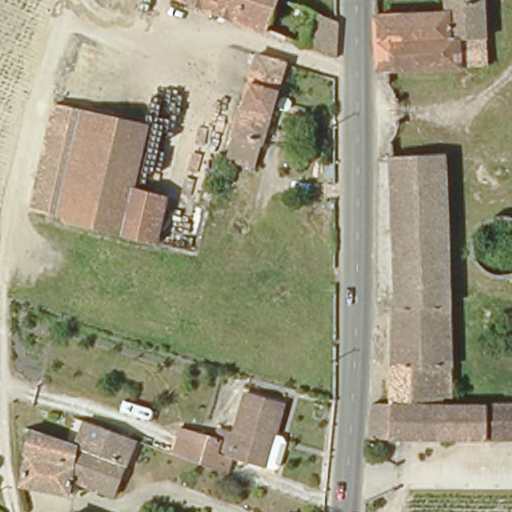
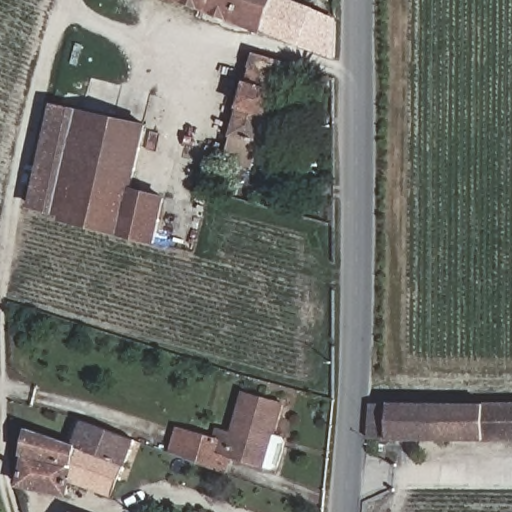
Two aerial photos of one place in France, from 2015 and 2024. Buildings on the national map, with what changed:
unchanged [(173,0),(277,0),(274,7),(265,35),(173,0)]
new [(300,45),(267,32),(274,7),(277,0),(294,0),(314,7),(338,19),(339,59),(300,45)]
demolished [(439,21),(438,0),(481,0),(482,69),(444,70),(372,70),(373,19),(439,21)]
demolished [(212,91),(163,77),(174,39),(224,54),(212,91)]
unchanged [(257,170),(230,161),(244,115),(239,113),(253,56),(262,57),(287,64),(257,170)]
unchanged [(144,130),(130,192),(164,202),(154,242),(27,211),(44,139),(51,102),(144,130)]
demolished [(379,290),(388,290),(386,156),(444,153),(446,297),(444,402),(384,401),(379,290)]
unchanged [(217,436),(219,430),(230,433),(243,395),(279,406),(266,450),(217,436)]
unchanged [(364,402),(384,401),(444,402),(512,404),(512,439),(364,433),(364,402)]
unchanged [(116,467),(71,451),(79,426),(79,423),(133,443),(122,469),(116,467)]
unchanged [(260,467),(231,460),(226,476),(173,456),(180,429),(217,438),(217,436),(266,450),(260,467)]
unchanged [(109,501),(66,486),(62,501),(15,487),(25,435),(71,451),(116,467),(122,469),(109,501)]

